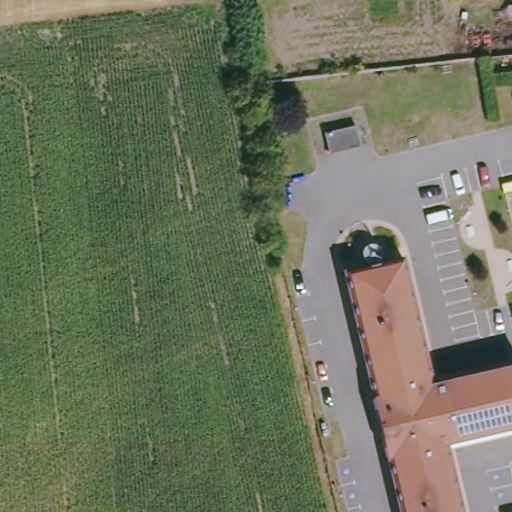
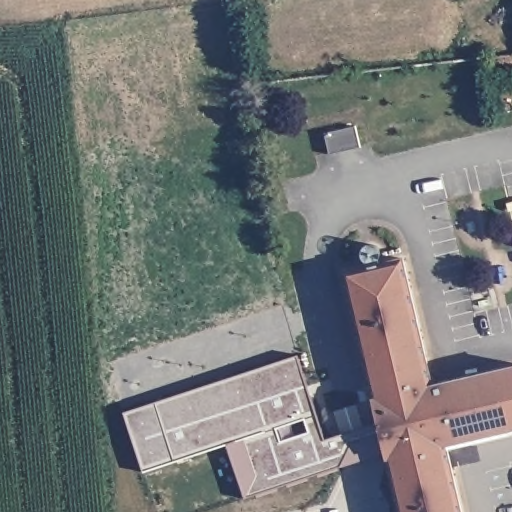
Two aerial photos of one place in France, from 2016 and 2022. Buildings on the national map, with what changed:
unchanged [(332,156),(325,131),(360,124),(365,147),(332,156)]
unchanged [(447,446),(463,512),(402,512),(347,273),(403,261),(432,384),(512,369),(512,429),(447,446)]
new [(349,444),(340,466),(243,500),(224,445),(142,473),(122,413),(297,357),(320,441),(380,419),(384,431),(349,444)]

